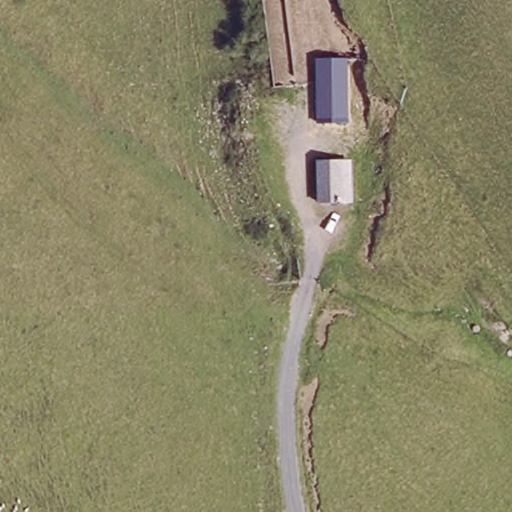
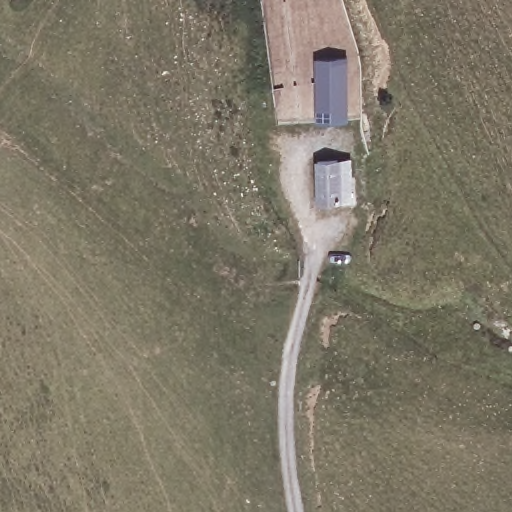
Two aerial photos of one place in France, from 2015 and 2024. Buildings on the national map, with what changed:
unchanged [(353,117),(313,119),(312,56),(350,57),(353,117)]
unchanged [(355,205),(320,205),(318,155),(353,160),(355,205)]

